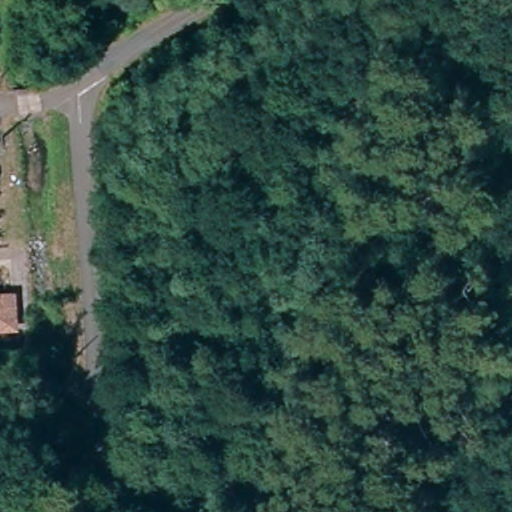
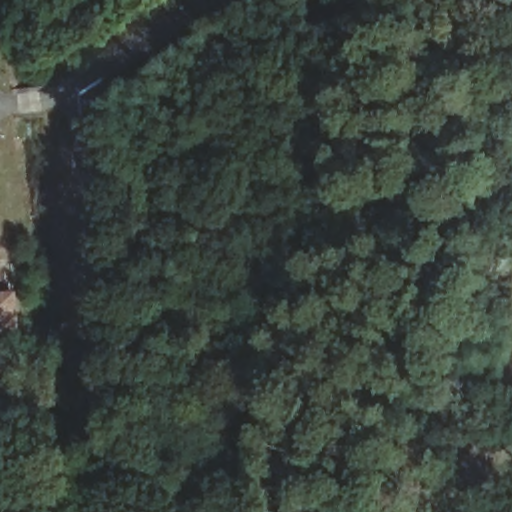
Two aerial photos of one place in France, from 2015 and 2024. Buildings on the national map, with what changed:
unchanged [(13,338),(0,340),(0,279),(10,278),(13,338)]

